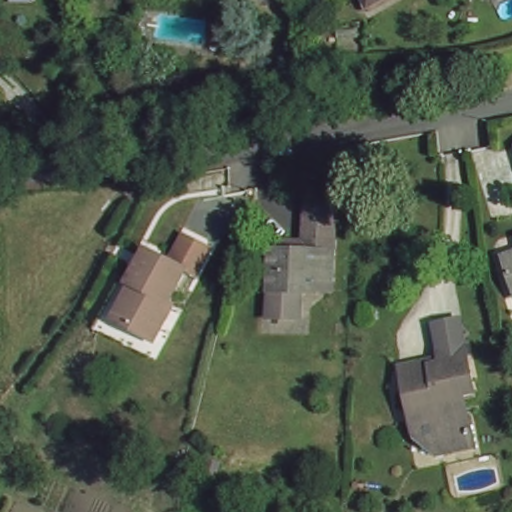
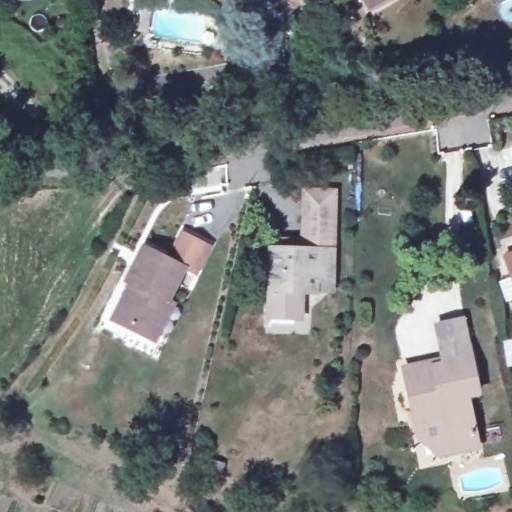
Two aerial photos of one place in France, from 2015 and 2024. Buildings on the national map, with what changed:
unchanged [(363,0),(390,0),(370,12),(363,0)]
unchanged [(311,295),(267,293),(268,247),(276,247),(277,239),(301,240),(301,205),(333,206),(333,281),(332,296),(311,295)]
unchanged [(212,249),(200,277),(192,273),(176,307),(183,311),(165,350),(124,332),(144,290),(136,286),(152,254),(171,262),(184,239),(212,249)]
unchanged [(512,254),(512,283),(504,256),(512,254)]
unchanged [(483,398),(471,402),(482,451),(440,458),(415,439),(401,363),(435,358),(430,316),(462,312),(483,398)]

